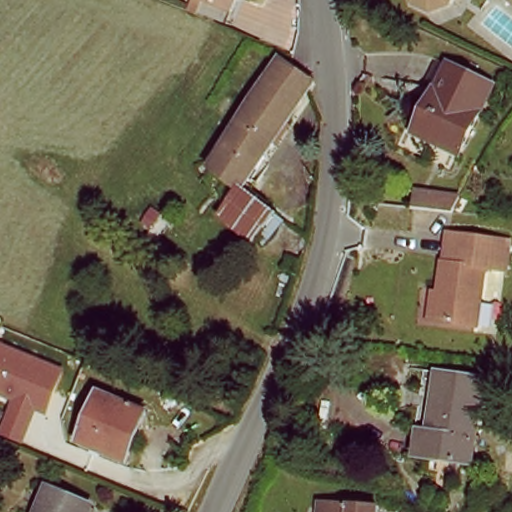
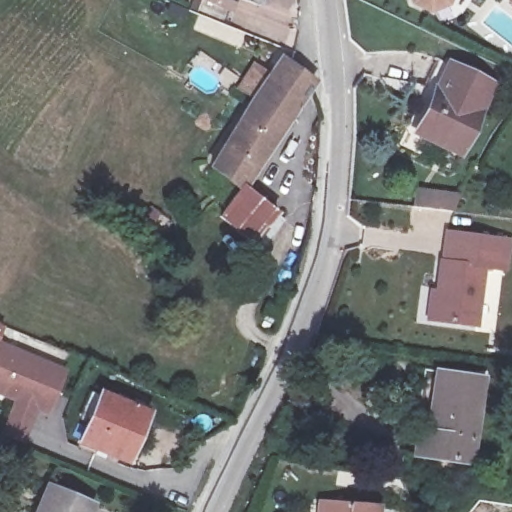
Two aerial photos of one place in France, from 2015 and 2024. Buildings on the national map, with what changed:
unchanged [(230,15),(192,0),(236,0),(230,15)]
unchanged [(446,7),(429,10),(428,11),(412,0),(451,0),(446,7)]
unchanged [(503,0),(512,0),(512,7),(503,0)]
unchanged [(207,169),(272,60),(305,82),(236,188),(207,169)]
unchanged [(415,135),(447,69),(487,90),(456,154),(415,135)]
unchanged [(452,214),(424,208),(410,206),(414,185),(429,189),(461,195),(452,214)]
unchanged [(270,210),(249,244),(216,219),(236,188),(270,210)]
unchanged [(427,323),(443,236),(506,246),(500,276),(484,273),(475,330),(427,323)]
unchanged [(287,293),(260,273),(268,259),(275,263),(283,241),(298,247),(287,293)]
unchanged [(51,417),(37,412),(25,443),(1,434),(13,401),(0,396),(0,343),(67,369),(51,417)]
unchanged [(470,469),(417,463),(420,436),(430,437),(438,374),(480,379),(470,469)]
unchanged [(145,415),(126,465),(78,446),(98,397),(145,415)]
unchanged [(91,512),(33,512),(44,486),(94,504),(91,512)]
unchanged [(330,507),(380,511),(379,512),(314,512),(314,506),(330,507)]

